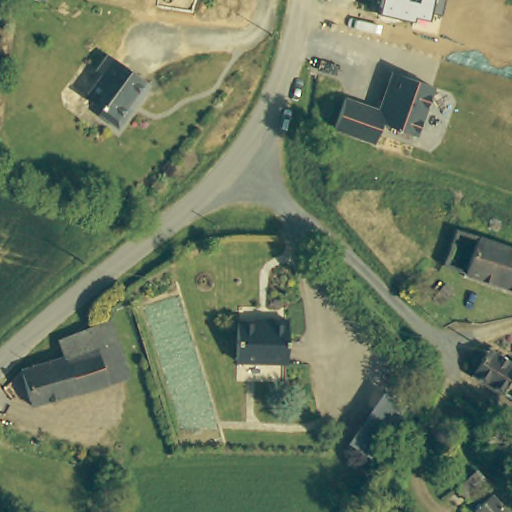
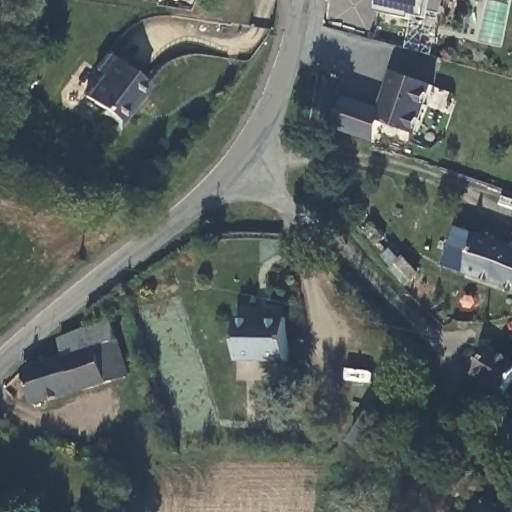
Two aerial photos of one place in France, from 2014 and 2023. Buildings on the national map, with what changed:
unchanged [(414,16),(412,21),(377,12),(380,0),(444,0),(441,15),(429,12),(429,18),(414,16)]
unchanged [(136,96),(131,92),(125,101),(129,104),(115,122),(96,107),(101,102),(83,89),(100,66),(94,62),(106,47),(148,79),(136,96)]
unchanged [(381,122),(373,142),(335,130),(346,98),(377,109),(390,72),(433,87),(417,136),(381,122)]
unchanged [(512,246),(512,289),(452,269),(462,229),(512,246)]
unchanged [(262,320),(262,314),(287,315),(284,362),(235,358),(236,318),(262,320)]
unchanged [(57,355),(51,336),(107,316),(127,377),(29,406),(18,368),(57,355)]
unchanged [(489,344),(512,355),(512,397),(496,386),(495,387),(471,365),(487,347),(489,344)]
unchanged [(386,390),(405,402),(372,453),(352,441),(386,390)]
unchanged [(463,452),(472,462),(452,482),(443,472),(463,452)]
unchanged [(512,512),(479,512),(496,495),(512,512)]

